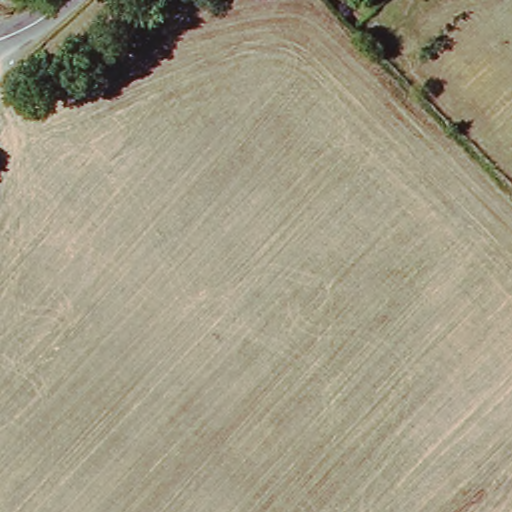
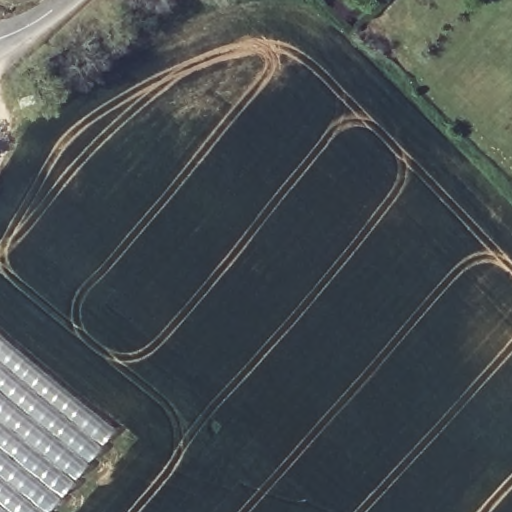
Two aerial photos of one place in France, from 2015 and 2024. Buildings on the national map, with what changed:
new [(115,430),(49,512),(8,512),(0,506),(0,337),(50,380),(115,430)]
new [(0,512),(0,506),(8,512),(0,512)]

